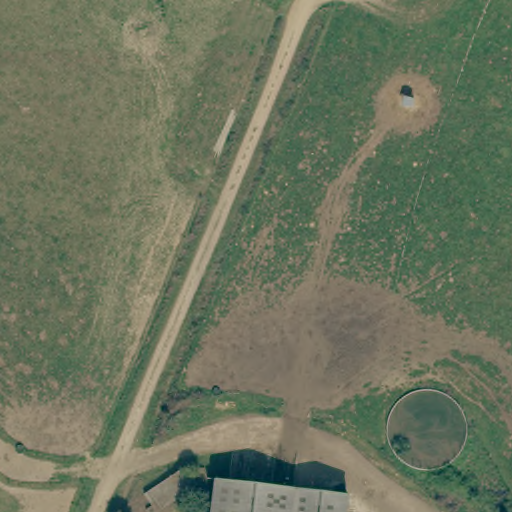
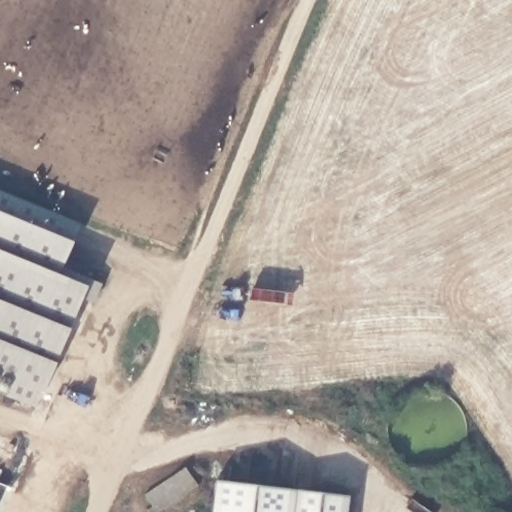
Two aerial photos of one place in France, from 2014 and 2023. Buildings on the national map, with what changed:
new [(80,224),(63,267),(87,279),(102,285),(93,305),(83,296),(56,364),(36,408),(4,396),(10,380),(0,375),(0,192),(80,224)]
unchanged [(153,512),(140,512),(147,507),(138,493),(180,469),(192,486),(153,512)]
unchanged [(349,493),(347,512),(214,512),(218,477),(349,493)]

